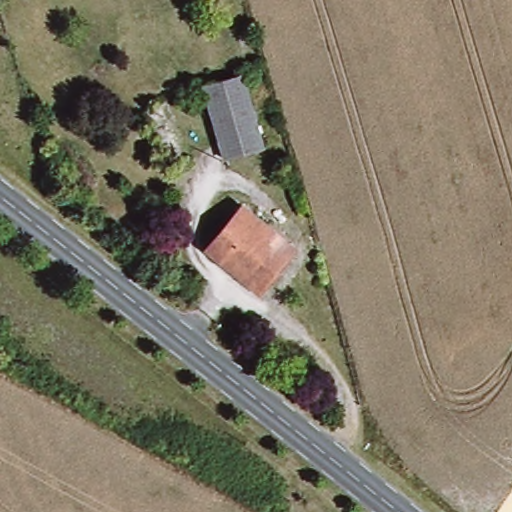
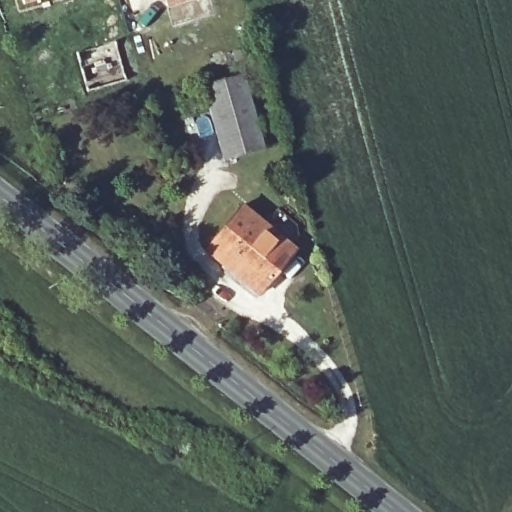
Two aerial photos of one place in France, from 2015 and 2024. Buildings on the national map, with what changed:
new [(24,4),(23,0),(37,0),(24,4)]
new [(168,5),(167,0),(185,0),(168,5)]
new [(126,80),(88,90),(76,52),(115,41),(126,80)]
unchanged [(242,81),(258,148),(227,156),(210,88),(242,81)]
unchanged [(264,292),(211,251),(245,206),(298,247),(264,292)]

